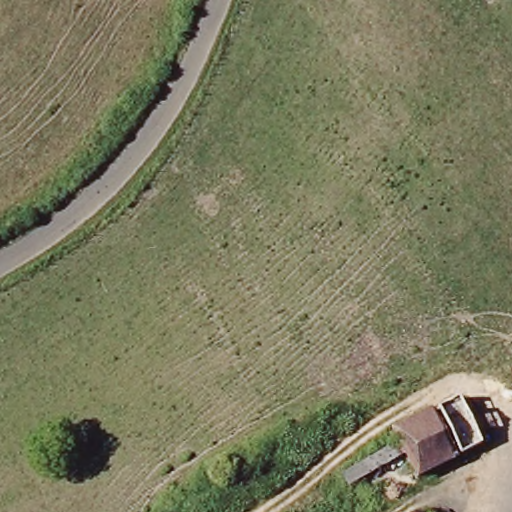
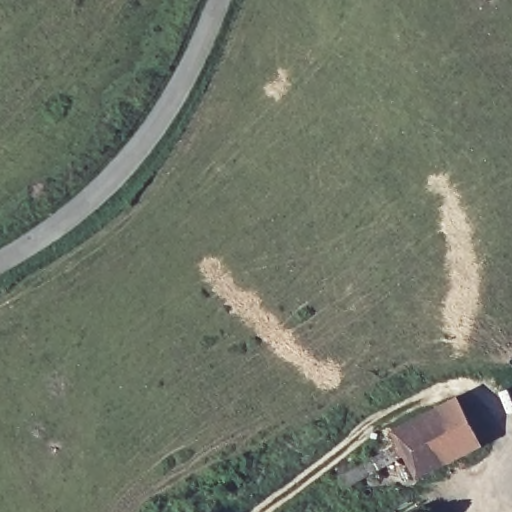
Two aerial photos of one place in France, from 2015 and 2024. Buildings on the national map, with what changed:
unchanged [(415,444),(409,432),(441,416),(463,460),(430,476),(422,457),(415,444)]
unchanged [(354,491),(347,477),(415,444),(422,457),(354,491)]

